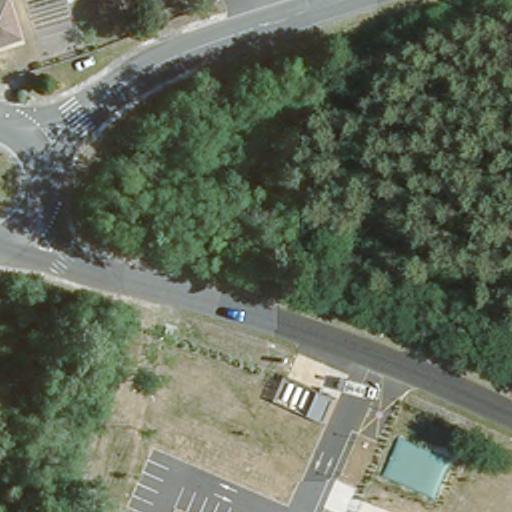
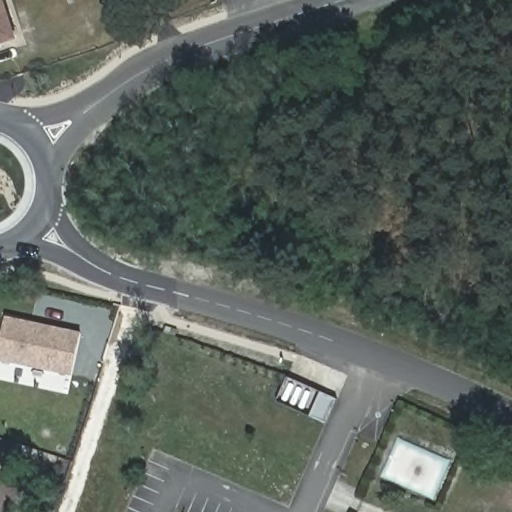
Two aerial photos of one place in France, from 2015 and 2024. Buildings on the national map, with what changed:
unchanged [(0,33),(0,0),(5,0),(14,28),(0,33)]
new [(77,331),(69,373),(0,361),(0,335),(4,318),(77,331)]
new [(319,391),(336,399),(326,423),(308,416),(319,391)]

